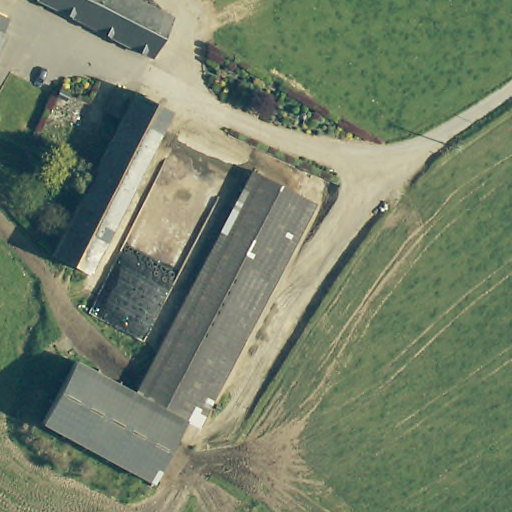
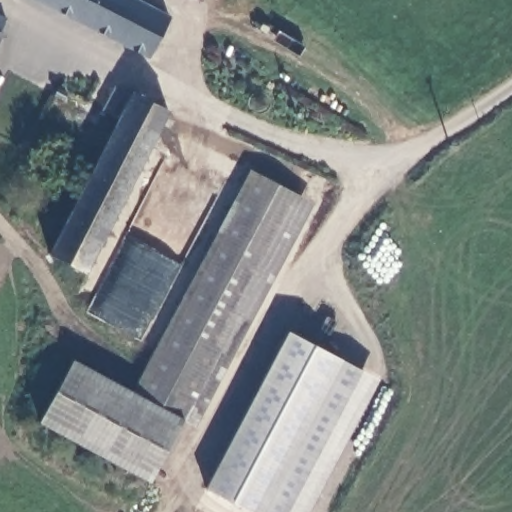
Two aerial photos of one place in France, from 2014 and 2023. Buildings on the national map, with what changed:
unchanged [(36,0),(132,0),(166,18),(148,56),(36,0)]
unchanged [(0,32),(0,17),(5,20),(0,32)]
unchanged [(46,256),(114,125),(96,115),(110,87),(130,95),(165,112),(82,274),(46,256)]
unchanged [(263,178),(315,204),(194,426),(143,398),(263,178)]
new [(353,368),(275,512),(249,512),(216,495),(301,339),(353,368)]
unchanged [(82,366),(130,392),(194,427),(172,467),(160,489),(49,427),(82,366)]
new [(375,379),(302,512),(275,512),(353,368),(375,379)]

